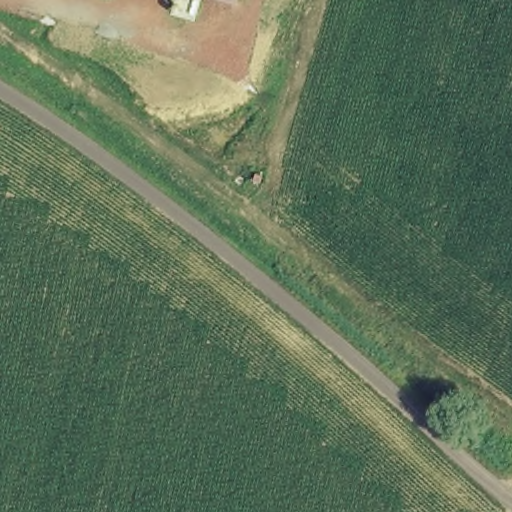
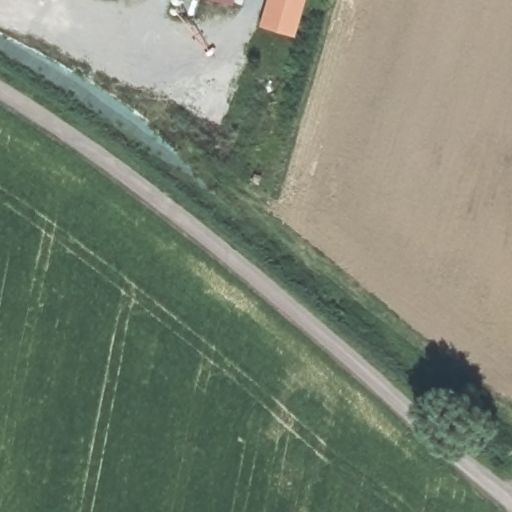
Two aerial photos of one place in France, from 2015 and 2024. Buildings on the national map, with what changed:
unchanged [(220,0),(236,0),(234,5),(220,0)]
new [(260,26),(268,0),(308,0),(297,37),(260,26)]

